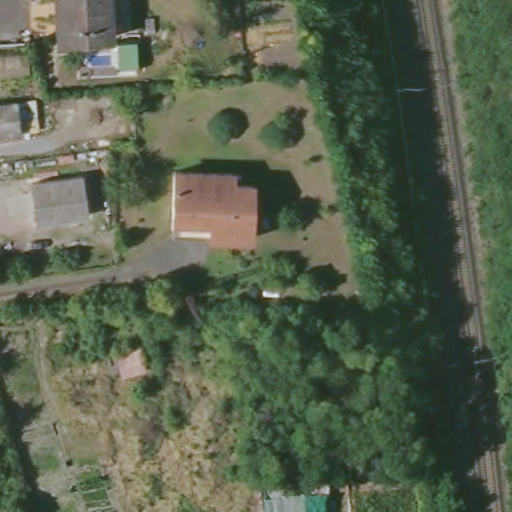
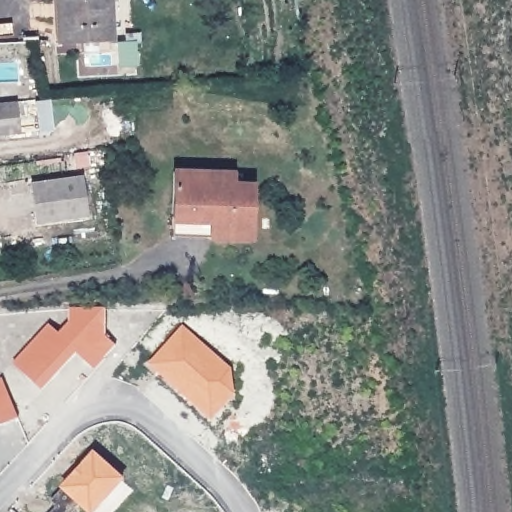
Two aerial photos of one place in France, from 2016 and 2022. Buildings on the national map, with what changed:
unchanged [(59,0),(109,0),(112,39),(61,42),(59,0)]
unchanged [(0,100),(23,102),(20,132),(0,131),(0,100)]
unchanged [(213,224),(172,223),(173,192),(174,167),(207,166),(232,167),(233,177),(253,177),(252,230),(213,230),(213,224)]
unchanged [(31,182),(80,174),(87,213),(37,221),(31,182)]
new [(50,319),(60,330),(68,319),(68,307),(109,306),(104,329),(116,346),(92,371),(75,353),(40,389),(12,359),(50,319)]
new [(145,364),(183,321),(232,366),(235,398),(208,420),(145,364)]
new [(17,415),(0,423),(0,378),(5,376),(17,415)]
new [(94,512),(83,512),(53,488),(95,448),(123,475),(94,512)]
demolished [(327,512),(266,512),(262,497),(261,483),(280,481),(282,495),(283,504),(325,499),(327,512)]

